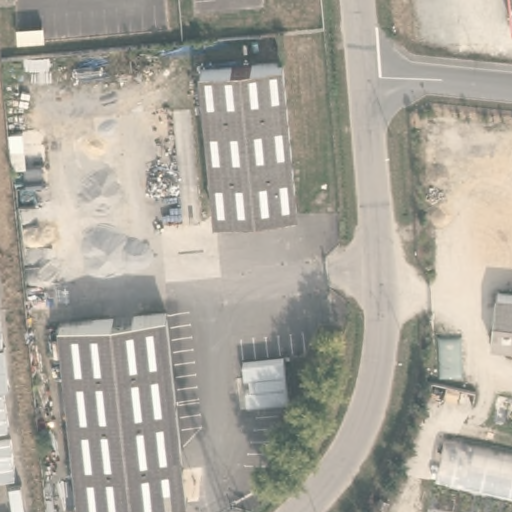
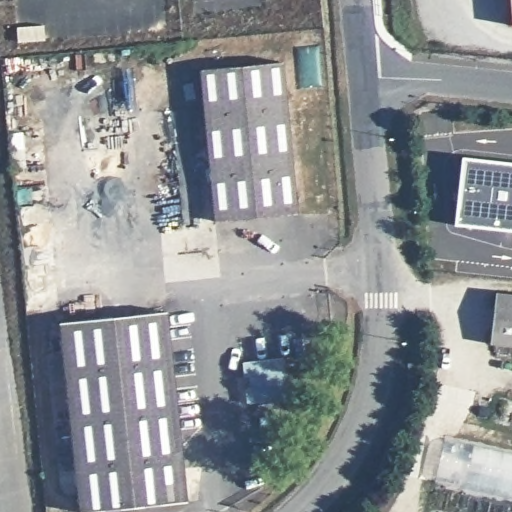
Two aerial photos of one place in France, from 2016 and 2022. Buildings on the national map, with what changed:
unchanged [(512,26),(511,26),(509,0),(512,0),(512,26)]
unchanged [(283,61),(298,213),(216,221),(200,70),(283,61)]
new [(461,155),(512,161),(512,233),(452,226),(461,155)]
unchanged [(512,346),(491,344),(497,292),(512,294),(512,346)]
unchanged [(187,502),(86,512),(81,512),(60,322),(166,312),(187,502)]
unchanged [(284,358),(288,399),(248,403),(246,389),(256,388),(255,376),(245,377),(243,362),(284,358)]
unchanged [(512,501),(436,484),(444,439),(512,453),(512,501)]

